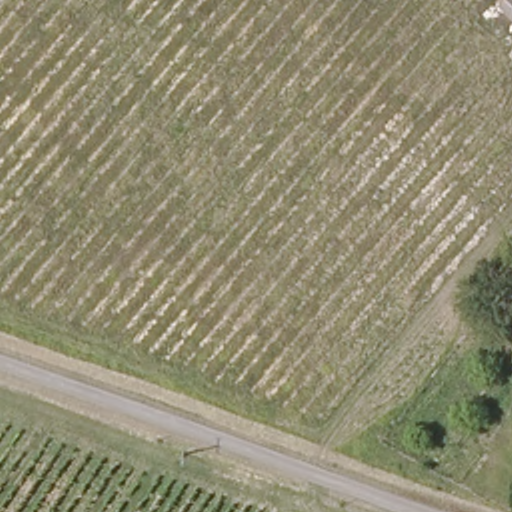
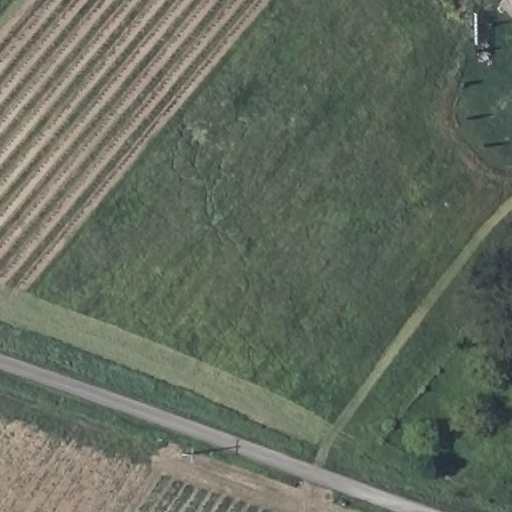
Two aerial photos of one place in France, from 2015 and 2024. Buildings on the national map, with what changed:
unchanged [(500,3),(504,0),(512,0),(512,15),(500,3)]

